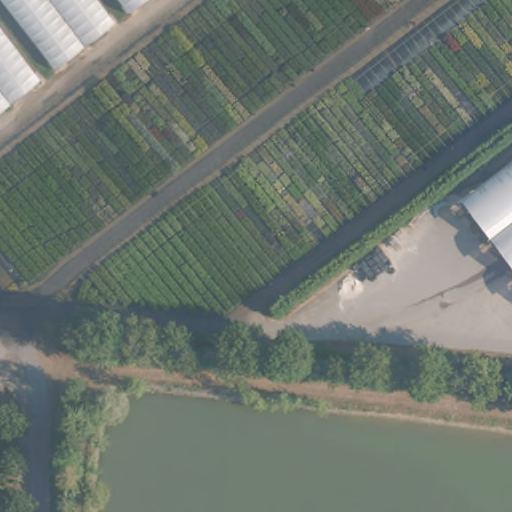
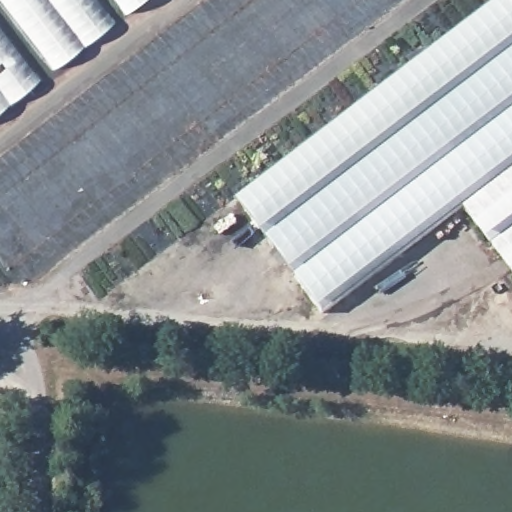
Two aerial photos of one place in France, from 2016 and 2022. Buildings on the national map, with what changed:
unchanged [(52,70),(0,3),(0,0),(100,0),(116,21),(52,70)]
unchanged [(115,0),(144,0),(126,14),(115,0)]
new [(323,312),(236,197),(495,0),(512,0),(512,167),(462,206),(323,312)]
unchanged [(0,110),(0,25),(42,78),(0,110)]
unchanged [(462,206),(512,167),(512,271),(462,206)]

